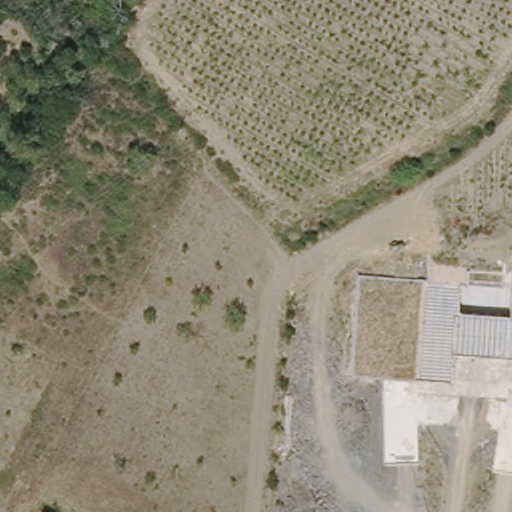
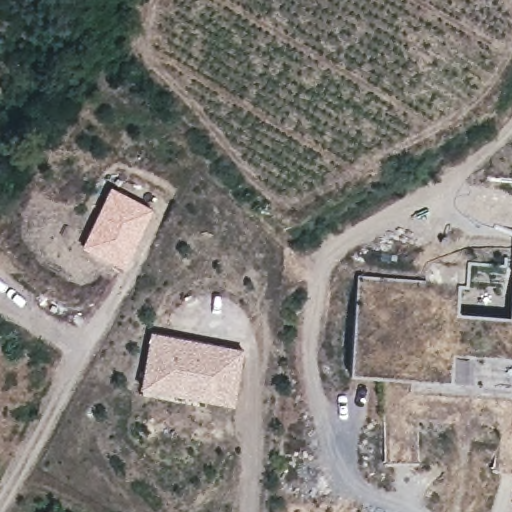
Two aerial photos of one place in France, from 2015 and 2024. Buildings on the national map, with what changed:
new [(110,186),(153,207),(122,266),(80,245),(110,186)]
unchanged [(0,199),(0,196),(1,197),(0,199)]
unchanged [(423,282),(460,286),(457,312),(510,316),(512,299),(512,358),(452,353),(450,381),(350,372),(357,275),(423,282)]
new [(237,400),(209,395),(208,403),(140,392),(150,329),(246,345),(237,400)]
unchanged [(51,512),(42,512),(44,508),(51,512)]

